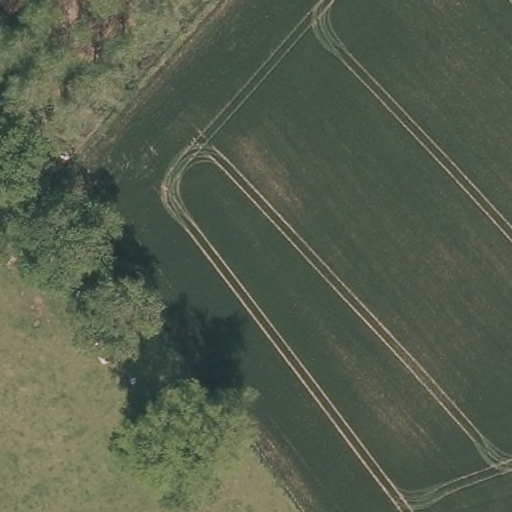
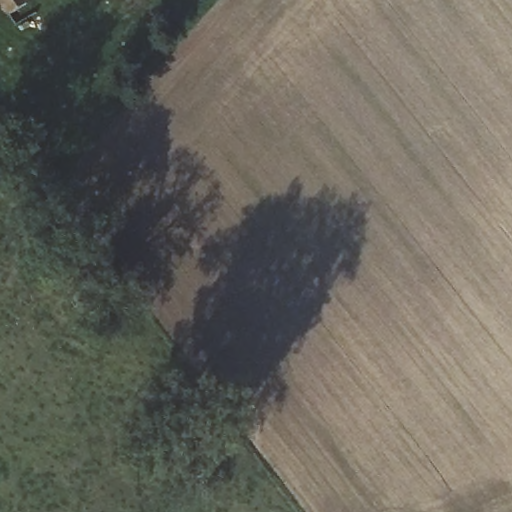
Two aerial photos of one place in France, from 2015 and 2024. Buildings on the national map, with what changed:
[]

